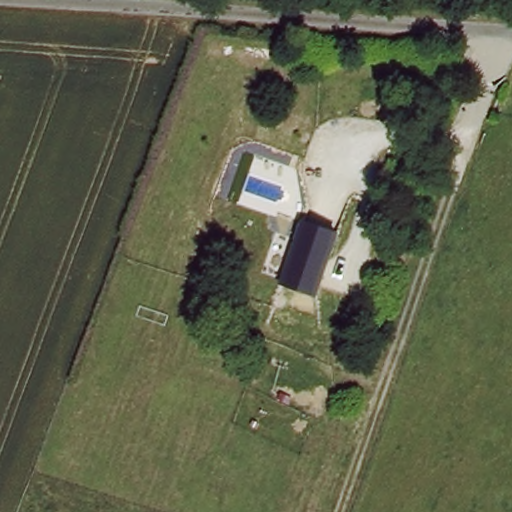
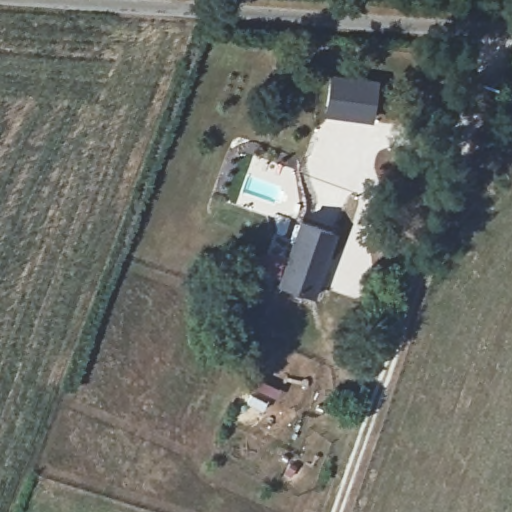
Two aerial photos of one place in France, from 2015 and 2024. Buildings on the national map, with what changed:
new [(329,72),(378,78),(372,121),(323,115),(329,72)]
unchanged [(336,230),(319,294),(285,281),(299,220),(336,230)]

